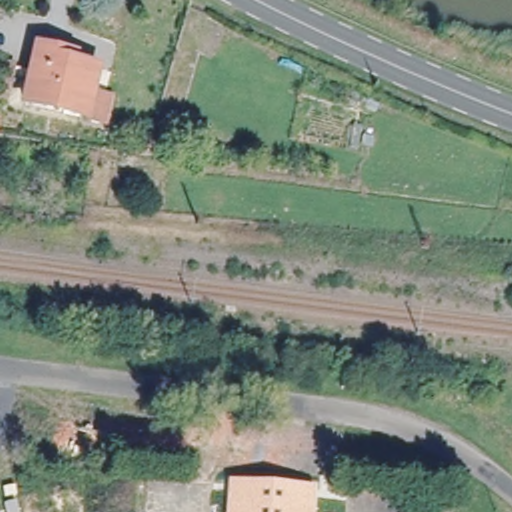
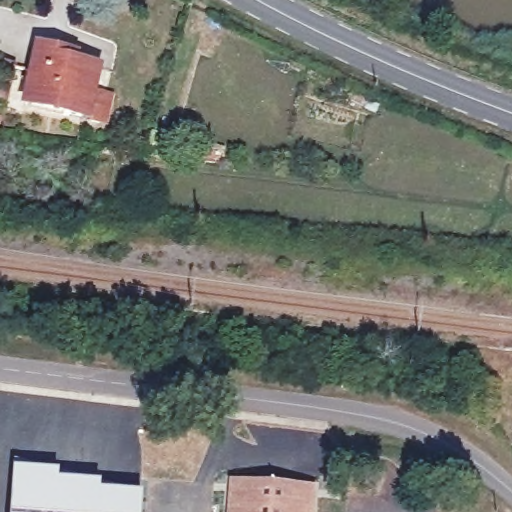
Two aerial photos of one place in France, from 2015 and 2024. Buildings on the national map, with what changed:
unchanged [(90,124),(24,111),(31,78),(36,54),(75,63),(74,71),(100,76),(95,99),(117,104),(112,129),(90,124)]
unchanged [(0,72),(16,75),(7,111),(0,109),(0,72)]
unchanged [(127,141),(137,142),(136,153),(126,151),(127,141)]
new [(46,473),(45,481),(89,484),(88,492),(130,495),(129,512),(0,512),(0,500),(2,470),(46,473)]
unchanged [(309,512),(232,512),(234,484),(310,490),(309,512)]

